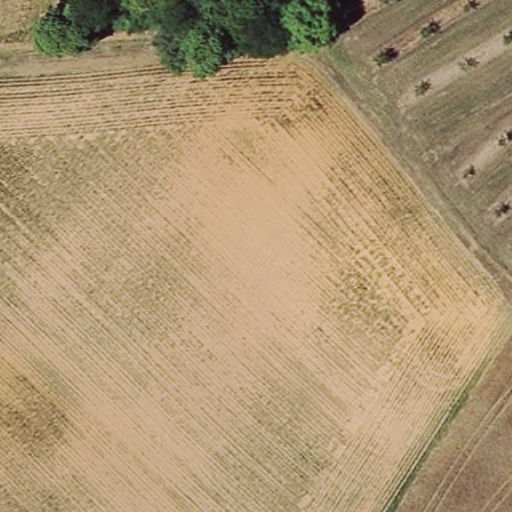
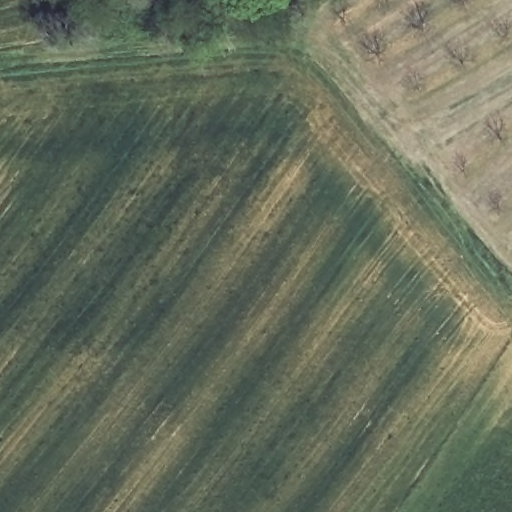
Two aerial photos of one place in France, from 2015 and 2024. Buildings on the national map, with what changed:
[]

